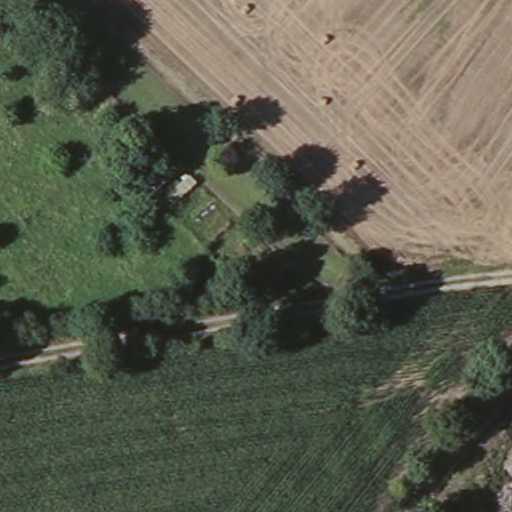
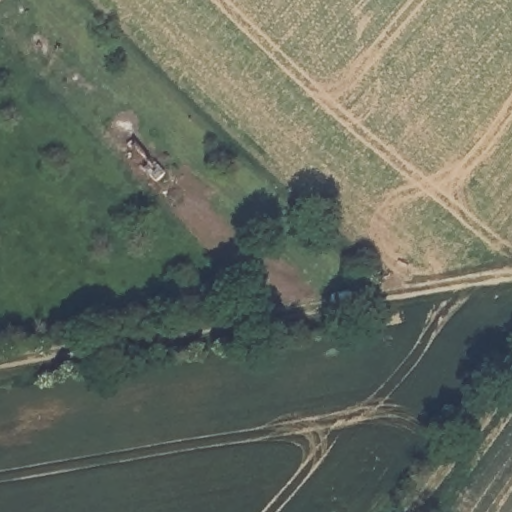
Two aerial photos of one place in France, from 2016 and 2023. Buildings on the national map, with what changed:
unchanged [(0,11),(0,0),(11,0),(0,11)]

